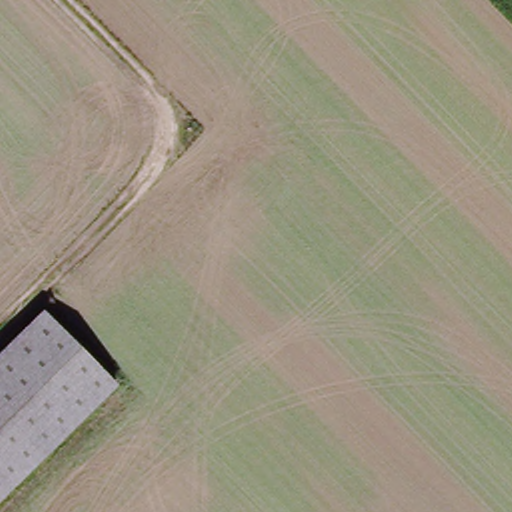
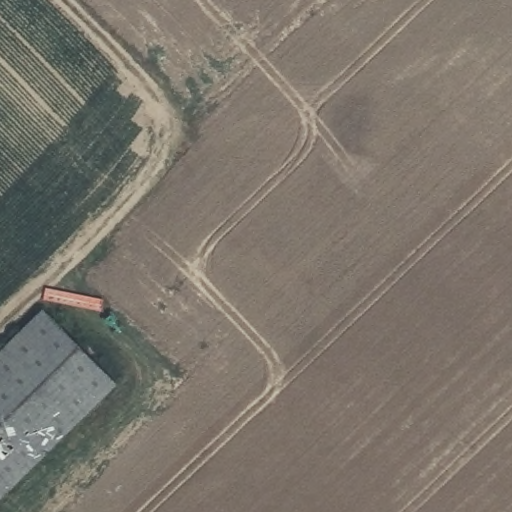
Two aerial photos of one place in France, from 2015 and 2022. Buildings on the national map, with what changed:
unchanged [(42,311),(118,385),(0,497),(0,352),(42,311)]

